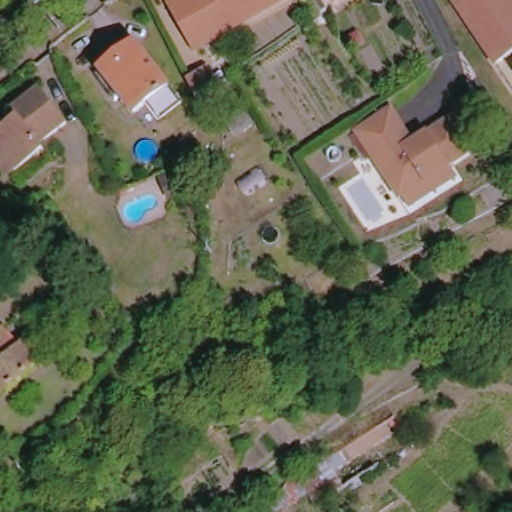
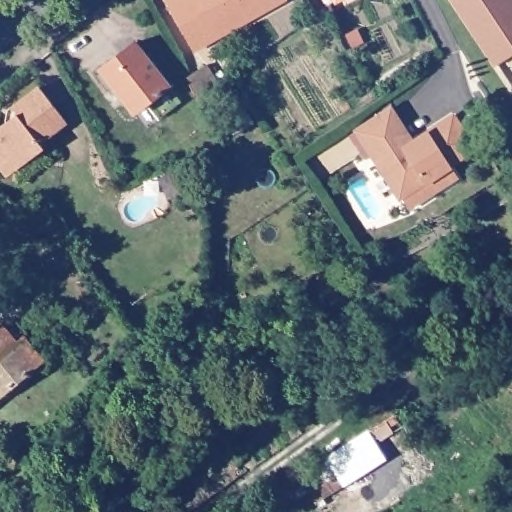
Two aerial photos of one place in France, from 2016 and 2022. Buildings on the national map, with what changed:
unchanged [(189,54),(165,10),(161,3),(166,0),(281,0),(189,54)]
unchanged [(495,67),(448,0),(505,0),(512,10),(512,54),(495,67)]
unchanged [(153,113),(138,94),(125,104),(95,64),(128,38),(175,97),(153,113)]
unchanged [(202,110),(193,98),(214,84),(223,98),(202,110)]
unchanged [(38,150),(11,172),(0,171),(0,124),(10,115),(5,109),(32,87),(61,123),(33,144),(38,150)]
unchanged [(405,204),(396,192),(392,193),(348,127),(383,104),(405,136),(445,109),(468,143),(443,159),(452,172),(405,204)]
unchanged [(183,192),(171,198),(163,177),(175,171),(183,192)]
unchanged [(0,327),(5,324),(22,342),(20,347),(33,363),(0,391),(0,327)]

